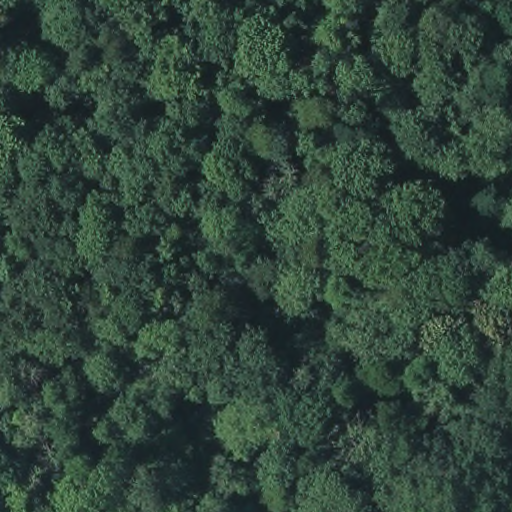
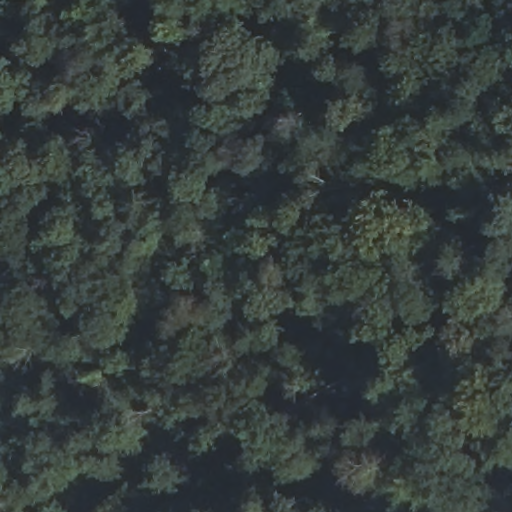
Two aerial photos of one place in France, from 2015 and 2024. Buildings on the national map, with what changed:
[]

